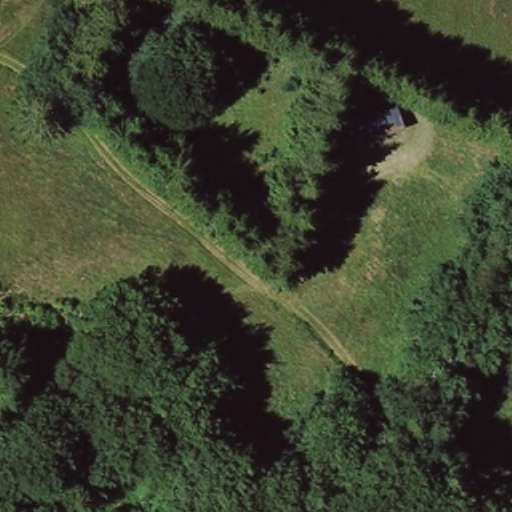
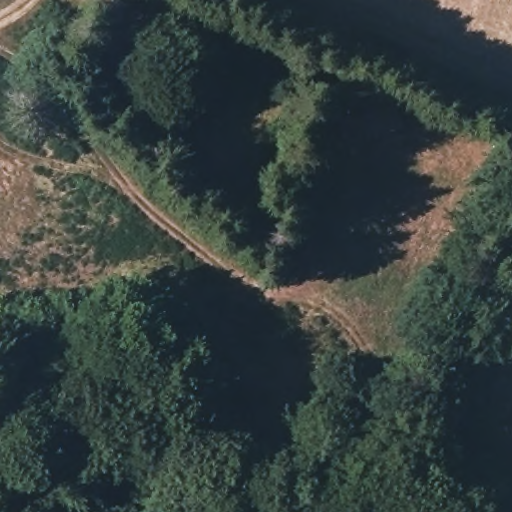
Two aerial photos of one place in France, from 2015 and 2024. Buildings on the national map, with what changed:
unchanged [(397,131),(364,142),(359,126),(392,117),(397,131)]

